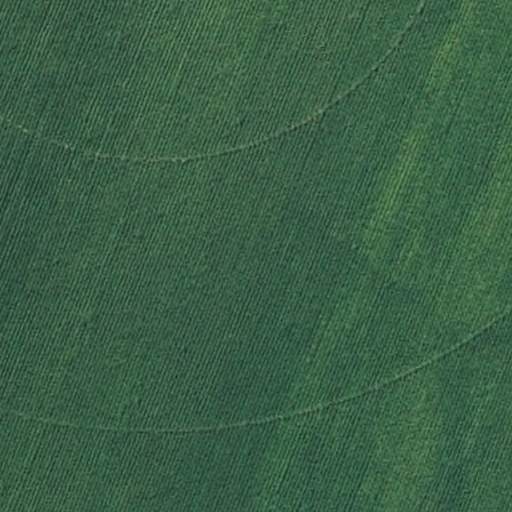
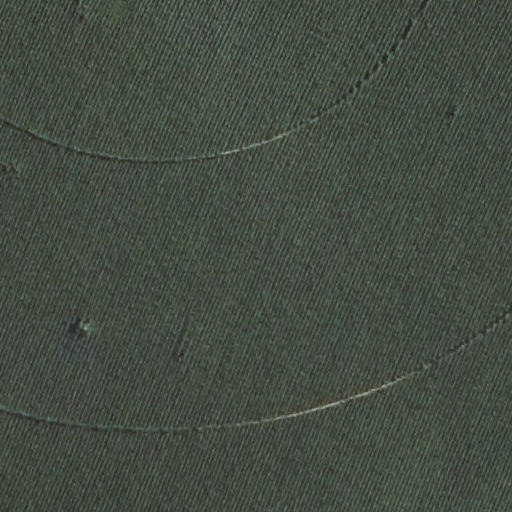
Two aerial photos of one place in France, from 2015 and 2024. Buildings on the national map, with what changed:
[]

